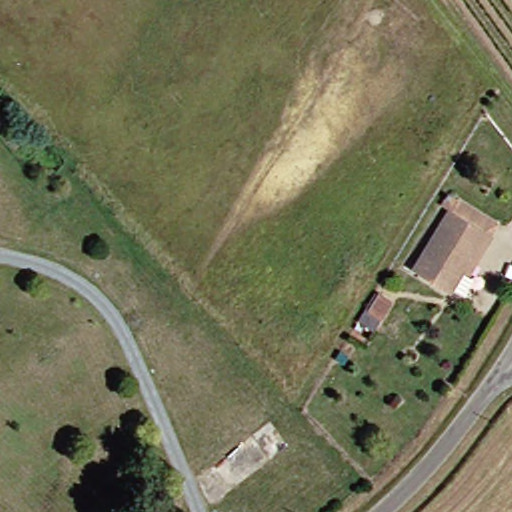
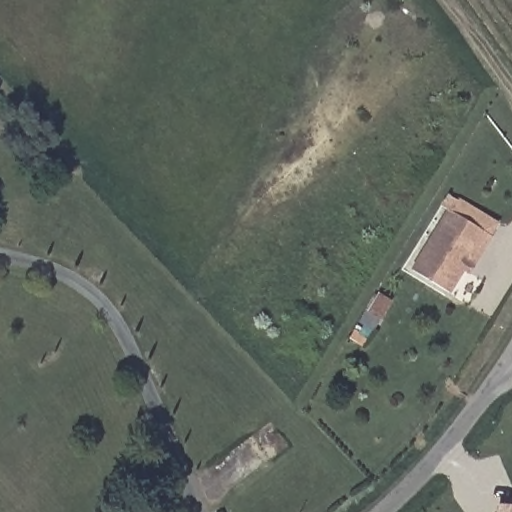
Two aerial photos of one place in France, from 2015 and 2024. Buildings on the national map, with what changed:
unchanged [(461,271),(446,294),(411,271),(447,213),(487,238),(482,247),(466,274),(461,271)]
unchanged [(392,303),(370,332),(355,325),(377,294),(392,303)]
new [(498,502),(512,503),(512,512),(497,512),(498,502)]

